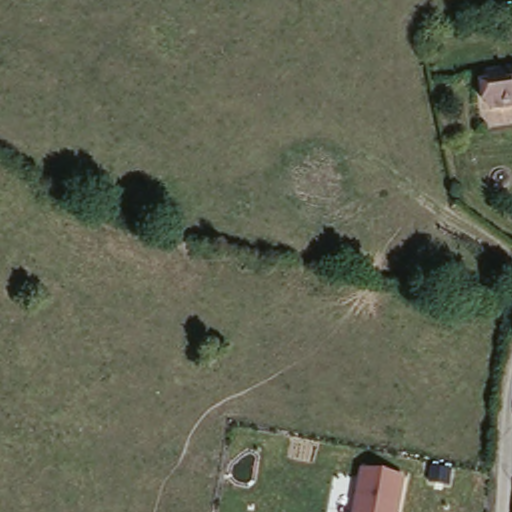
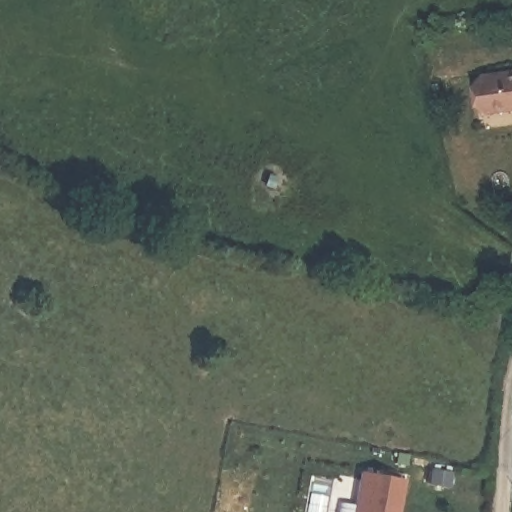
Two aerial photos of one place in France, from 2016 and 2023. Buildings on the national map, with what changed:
unchanged [(512,110),(492,114),(484,77),(512,71),(512,110)]
unchanged [(405,479),(399,512),(353,512),(360,471),(405,479)]

